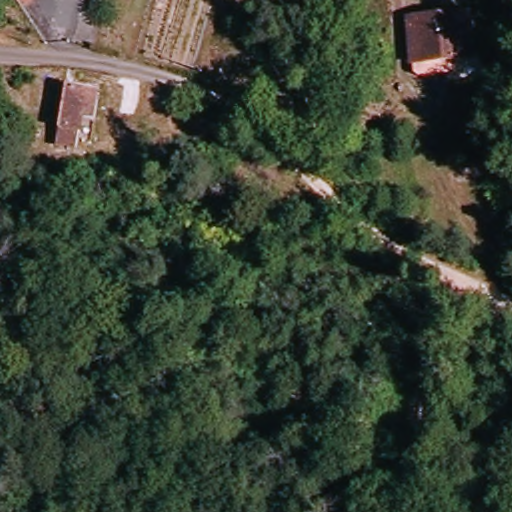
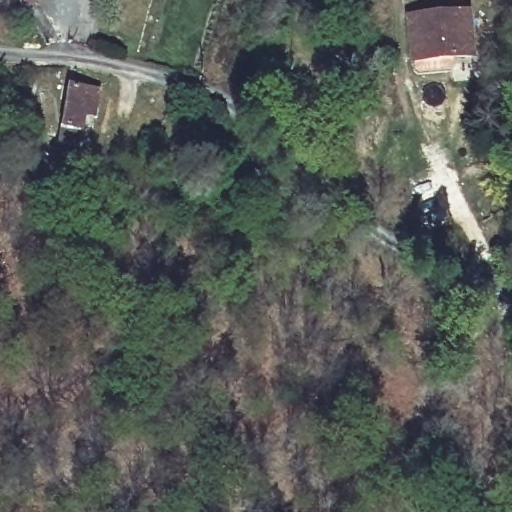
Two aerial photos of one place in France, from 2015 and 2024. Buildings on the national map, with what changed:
unchanged [(36,0),(43,0),(38,3),(36,0)]
unchanged [(456,66),(424,66),(421,62),(421,52),(419,52),(419,7),(478,9),(479,55),(459,54),(460,64),(456,66)]
unchanged [(78,149),(61,95),(82,88),(93,84),(100,106),(92,111),(100,140),(78,149)]

